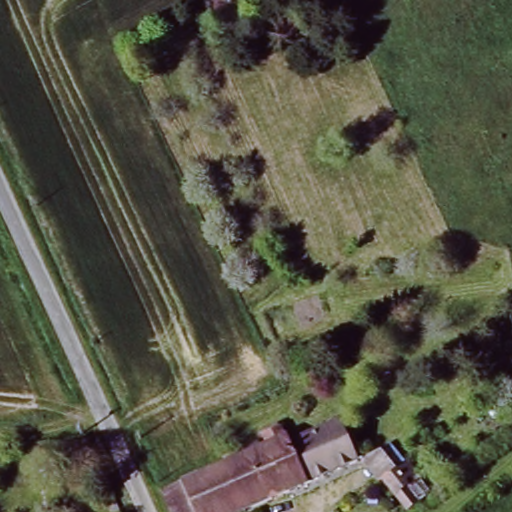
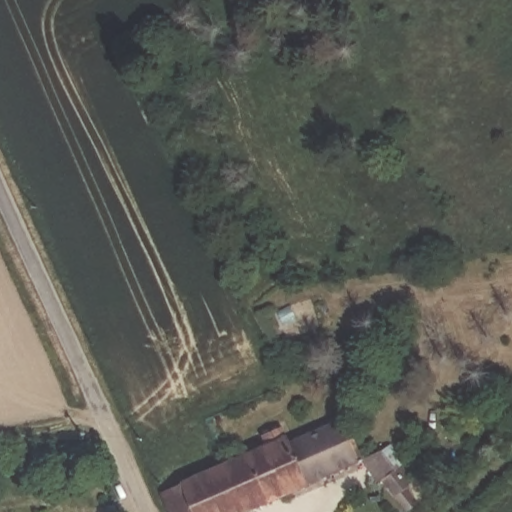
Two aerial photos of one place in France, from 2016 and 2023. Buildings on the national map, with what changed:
unchanged [(218,460),(295,433),(299,449),(368,423),(375,442),(365,447),(366,462),(366,468),(243,511),(218,460)]
unchanged [(398,446),(407,461),(422,480),(413,487),(421,503),(405,511),(395,497),(380,483),(366,462),(398,446)]
unchanged [(243,511),(240,512),(168,512),(155,480),(218,460),(243,511)]

